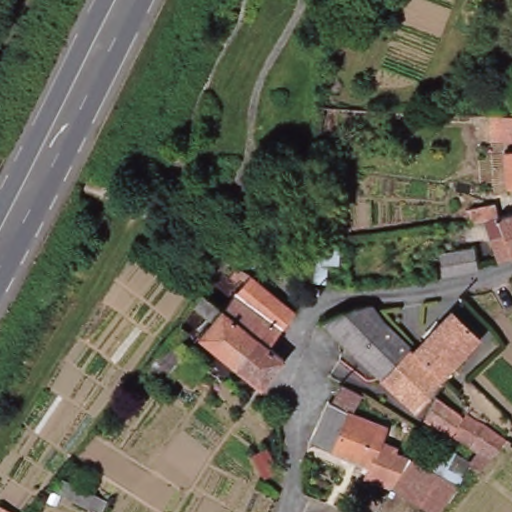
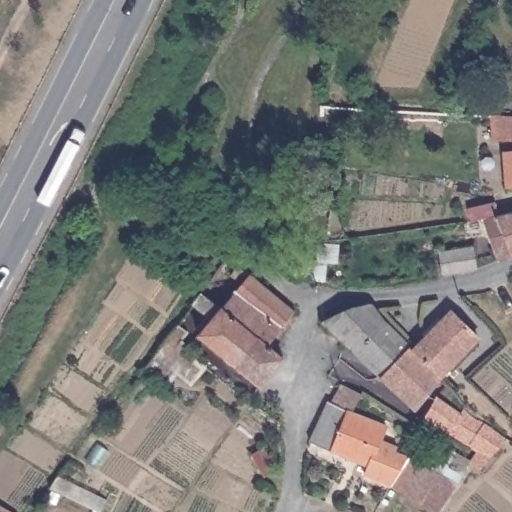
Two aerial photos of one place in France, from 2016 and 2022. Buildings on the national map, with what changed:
unchanged [(486,126),(472,124),(472,113),(512,115),(512,140),(485,138),(486,126)]
unchanged [(506,186),(505,148),(512,148),(512,187),(512,185),(506,186)]
unchanged [(512,256),(511,256),(501,260),(487,218),(477,222),(473,209),(496,202),(500,214),(503,213),(512,210),(512,256)]
unchanged [(342,245),(341,264),(321,263),(322,244),(342,245)]
unchanged [(478,274),(443,279),(440,257),(475,251),(478,273),(478,274)]
unchanged [(247,278),(243,274),(240,278),(234,273),(242,263),(245,260),(255,269),(300,309),(286,327),(238,289),(247,278)]
unchanged [(273,343),(289,357),(267,384),(240,363),(262,336),(224,307),(238,289),(286,327),(273,343)]
unchanged [(205,292),(224,307),(262,336),(240,363),(202,334),(216,317),(197,302),(205,292)]
unchanged [(382,375),(323,319),(347,306),(372,302),(377,309),(383,318),(411,345),(382,375)]
unchanged [(434,368),(416,350),(453,311),(480,336),(441,375),(434,368)]
unchanged [(184,323),(194,330),(186,341),(194,347),(192,350),(212,365),(199,384),(185,373),(176,385),(152,367),(162,355),(184,323)]
unchanged [(416,350),(434,368),(441,375),(443,377),(442,379),(417,408),(382,375),(411,345),(416,350)]
unchanged [(391,480),(367,466),(372,457),(334,448),(312,439),(325,410),(329,401),(332,403),(343,383),(363,393),(352,412),(389,421),(386,432),(393,436),(401,441),(398,444),(410,451),(391,480)]
unchanged [(472,442),(452,431),(426,416),(437,394),(462,411),(465,408),(466,407),(487,423),(507,438),(481,468),(472,460),(481,447),(472,442)]
unchanged [(267,450),(277,475),(262,480),(252,456),(267,450)]
unchanged [(410,451),(434,467),(457,483),(438,512),(432,512),(391,480),(410,451)]
unchanged [(71,456),(86,464),(85,468),(80,479),(106,493),(97,509),(47,485),(69,459),(71,456)]
unchanged [(8,512),(0,512),(0,508),(8,512)]

